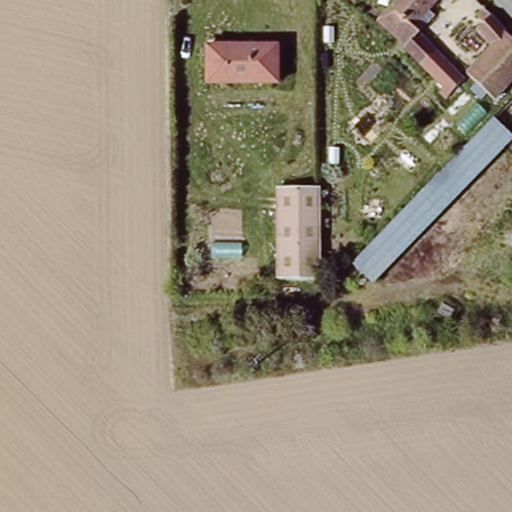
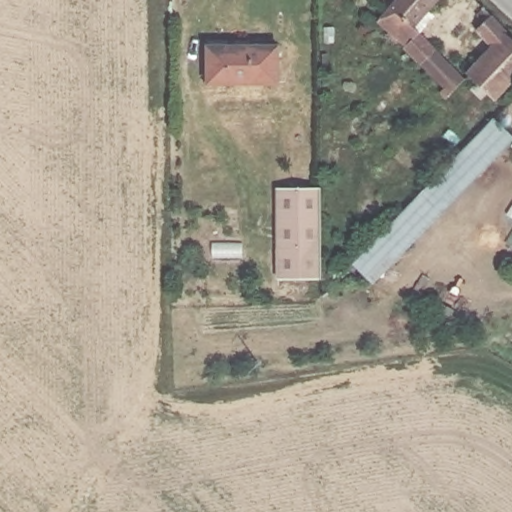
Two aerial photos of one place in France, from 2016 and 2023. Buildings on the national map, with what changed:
unchanged [(442,80),(426,66),(407,51),(405,46),(378,24),(398,0),(438,0),(426,12),(433,20),(420,32),(439,50),(455,65),(442,80)]
unchanged [(512,40),(512,87),(497,103),(467,77),(491,49),(477,34),(492,20),(512,40)]
unchanged [(280,48),(280,85),(213,85),(212,49),(280,48)]
unchanged [(449,92),(444,89),(452,80),(457,85),(449,92)]
unchanged [(490,117),(512,135),(512,145),(375,285),(352,262),(490,117)]
unchanged [(274,185),(320,184),(325,276),(274,276),(274,185)]

